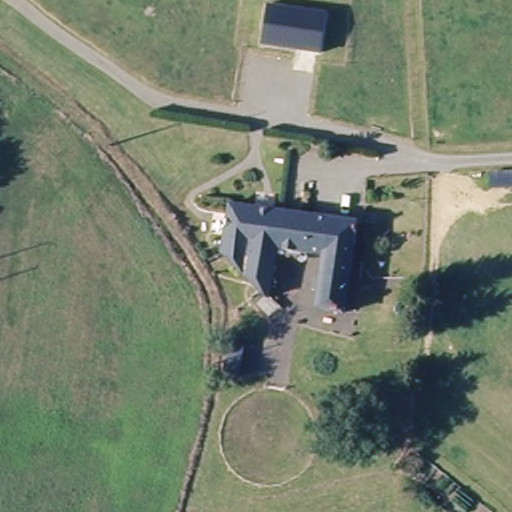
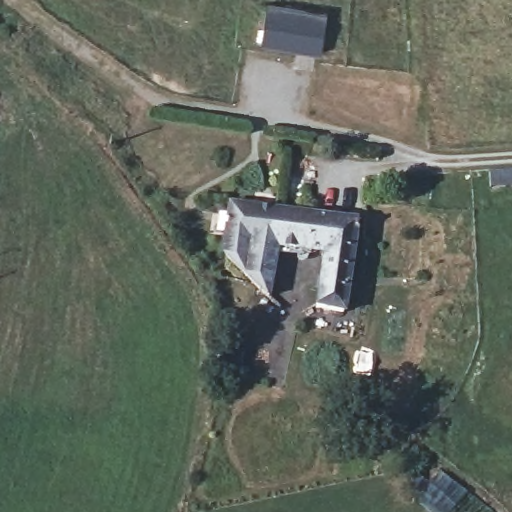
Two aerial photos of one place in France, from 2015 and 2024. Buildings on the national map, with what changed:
unchanged [(263,0),(323,8),(318,47),(257,39),(263,0)]
unchanged [(230,197),(300,208),(296,249),(277,247),(271,298),(223,252),(230,197)]
unchanged [(300,208),(360,217),(347,304),(317,300),(322,252),(296,249),(300,208)]

